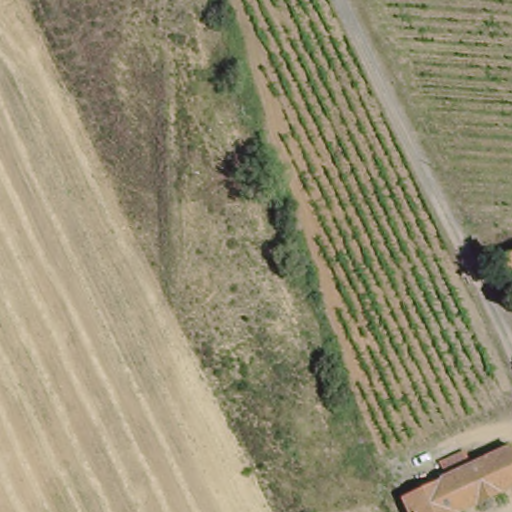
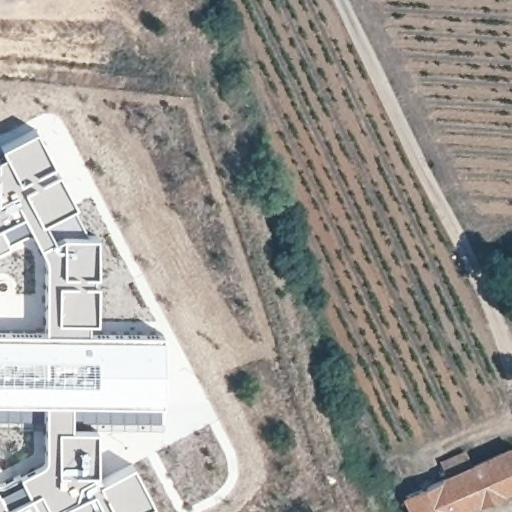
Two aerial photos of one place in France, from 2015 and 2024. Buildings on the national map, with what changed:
new [(73,430),(98,430),(99,474),(101,480),(132,464),(154,503),(138,512),(0,512),(0,156),(6,153),(1,145),(34,129),(75,204),(72,205),(87,234),(100,235),(97,332),(162,331),(161,401),(73,404),(73,430)]
unchanged [(512,258),(512,284),(503,261),(512,258)]
unchanged [(450,475),(443,460),(464,451),(470,465),(512,447),(512,487),(458,511),(455,512),(413,512),(406,495),(450,475)]
unchanged [(458,512),(455,512),(458,511),(458,512)]

